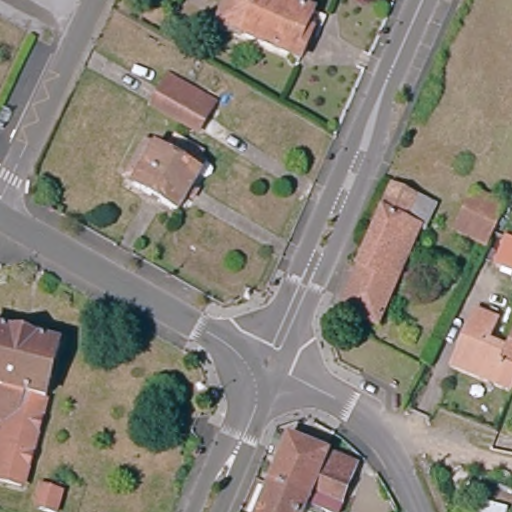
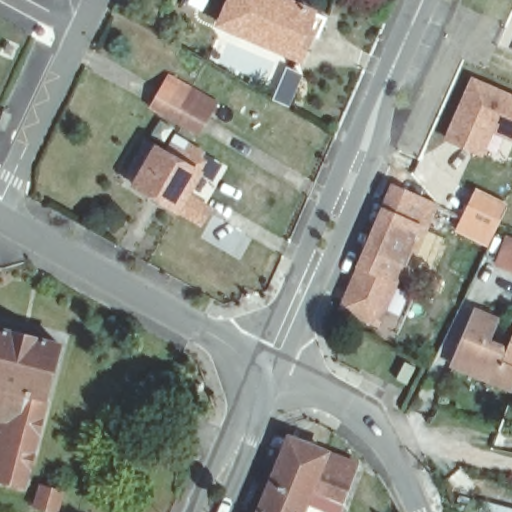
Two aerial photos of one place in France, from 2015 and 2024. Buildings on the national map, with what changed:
unchanged [(308,37),(300,58),(225,28),(234,10),(225,5),(227,0),(287,0),(310,9),(305,24),(313,27),(308,37)]
new [(512,141),(493,134),(483,157),(443,140),(470,76),(512,94),(512,141)]
unchanged [(175,78),(211,98),(195,129),(157,110),(175,78)]
unchanged [(129,179),(142,155),(154,161),(157,154),(167,159),(174,149),(200,163),(209,168),(203,178),(182,215),(138,191),(126,185),(129,179)]
unchanged [(387,185),(432,204),(418,234),(411,232),(373,325),(336,311),(387,185)]
unchanged [(455,232),(466,210),(475,193),(506,207),(498,223),(497,225),(487,246),(455,232)]
unchanged [(512,227),(512,261),(493,254),(504,224),(512,227)]
unchanged [(507,380),(442,352),(455,321),(498,339),(494,348),(499,350),(512,321),(512,369),(511,369),(507,380)]
unchanged [(62,338),(20,491),(1,486),(0,490),(0,415),(0,322),(62,338)]
demolished [(481,420),(486,409),(506,417),(501,428),(481,420)]
unchanged [(293,512),(249,512),(283,431),(349,460),(343,475),(334,497),(327,512),(326,512),(298,499),(293,512)]
unchanged [(65,490),(59,512),(48,512),(39,509),(45,485),(65,490)]

